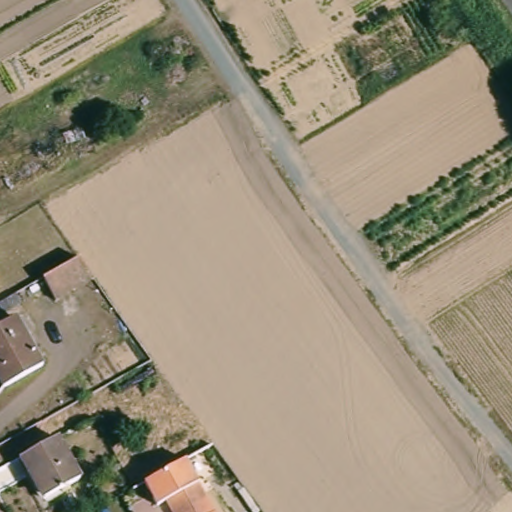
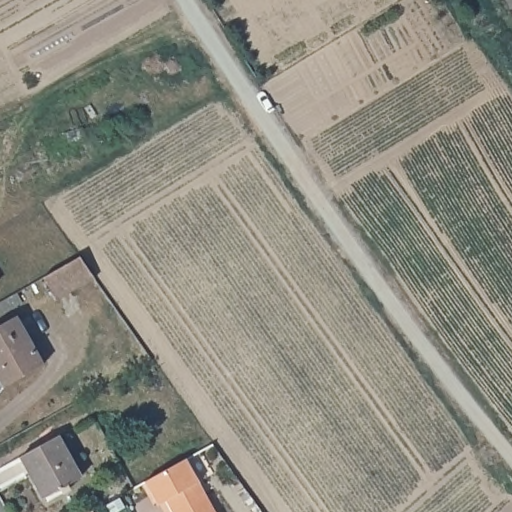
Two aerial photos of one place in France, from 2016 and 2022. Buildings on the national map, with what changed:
unchanged [(75,260),(90,281),(49,304),(37,281),(75,260)]
unchanged [(0,326),(14,319),(20,330),(40,368),(0,389),(0,326)]
unchanged [(59,435),(82,476),(47,496),(24,455),(59,435)]
unchanged [(159,510),(147,490),(190,466),(210,503),(215,512),(171,512),(167,506),(159,510)]

